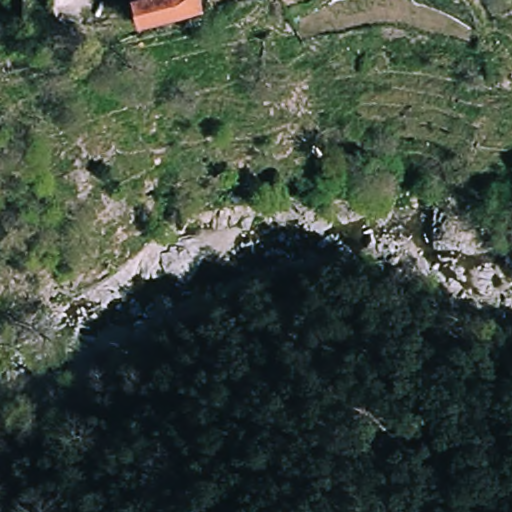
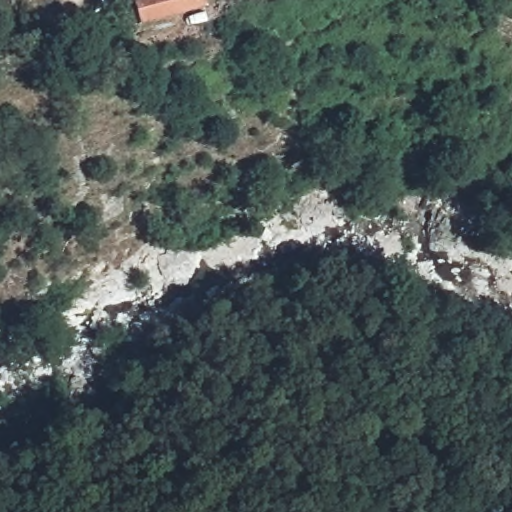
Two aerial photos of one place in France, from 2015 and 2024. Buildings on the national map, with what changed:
unchanged [(141,23),(135,0),(198,0),(199,6),(141,23)]

